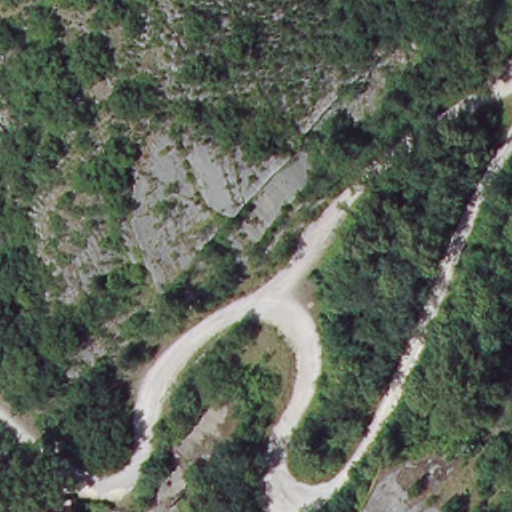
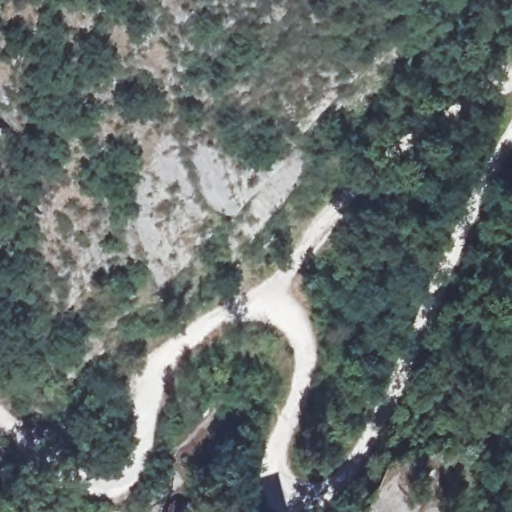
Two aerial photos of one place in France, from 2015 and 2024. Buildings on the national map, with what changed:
unchanged [(86,452),(66,439),(77,423),(97,437),(86,452)]
unchanged [(138,448),(128,451),(127,441),(137,440),(138,448)]
unchanged [(48,512),(48,506),(69,505),(68,512),(48,512)]
unchanged [(172,512),(195,507),(196,512),(172,512)]

